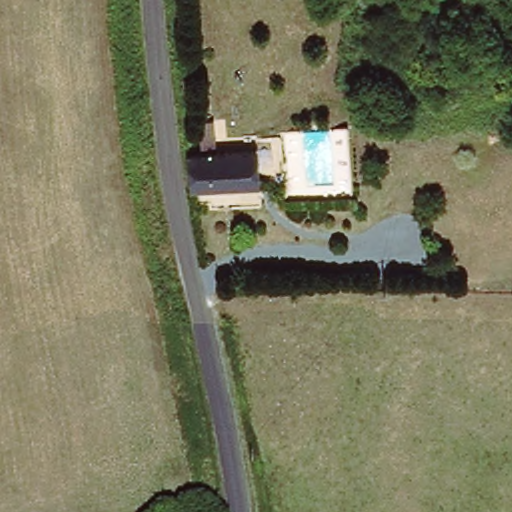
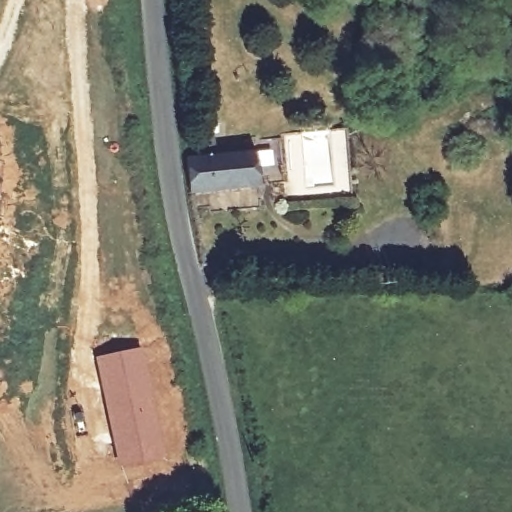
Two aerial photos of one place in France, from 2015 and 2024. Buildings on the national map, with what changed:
unchanged [(263,184),(197,189),(195,156),(203,155),(201,125),(217,124),(219,155),(261,152),(263,184)]
new [(143,347),(165,457),(118,467),(95,356),(143,347)]

